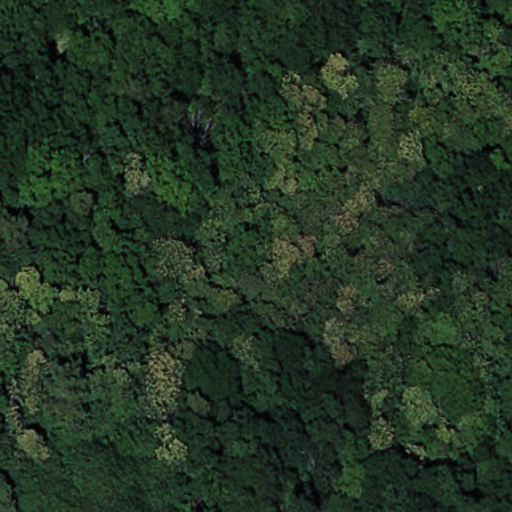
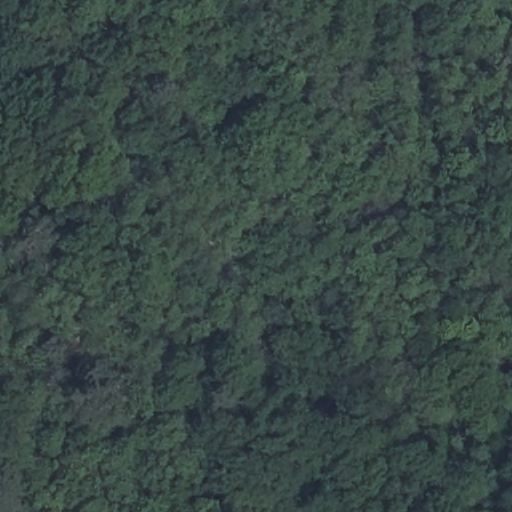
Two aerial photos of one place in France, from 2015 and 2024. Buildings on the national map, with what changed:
[]

